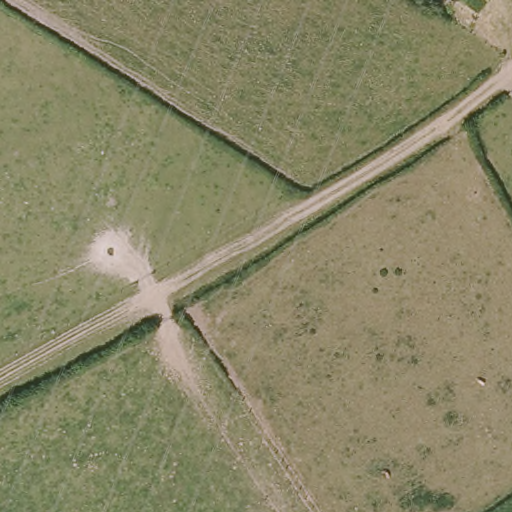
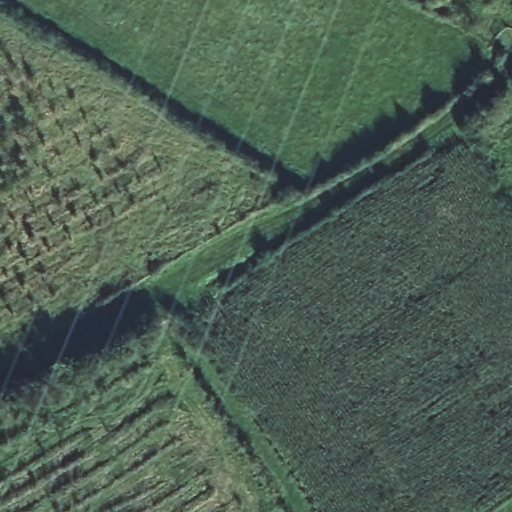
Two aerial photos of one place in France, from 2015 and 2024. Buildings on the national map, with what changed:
[]

